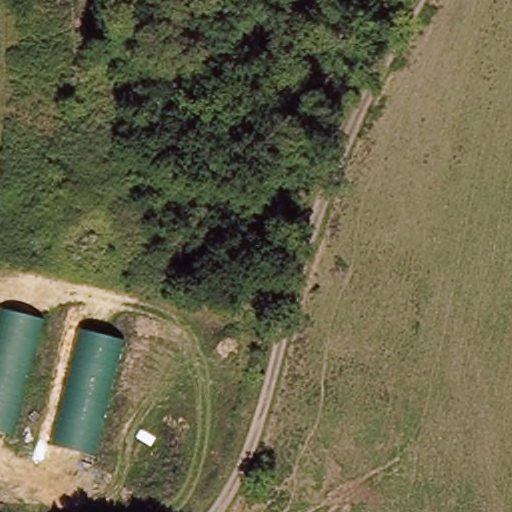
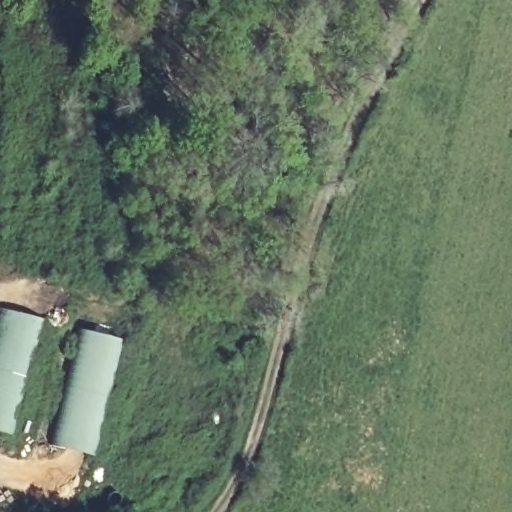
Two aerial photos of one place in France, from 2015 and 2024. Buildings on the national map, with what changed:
unchanged [(44,321),(15,431),(0,428),(0,310),(44,321)]
unchanged [(122,342),(94,455),(50,445),(78,331),(122,342)]

